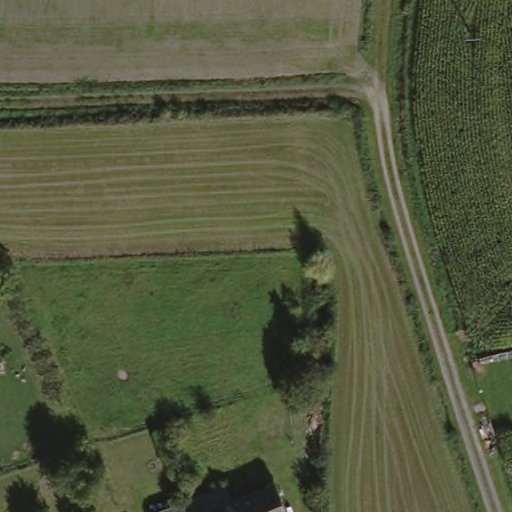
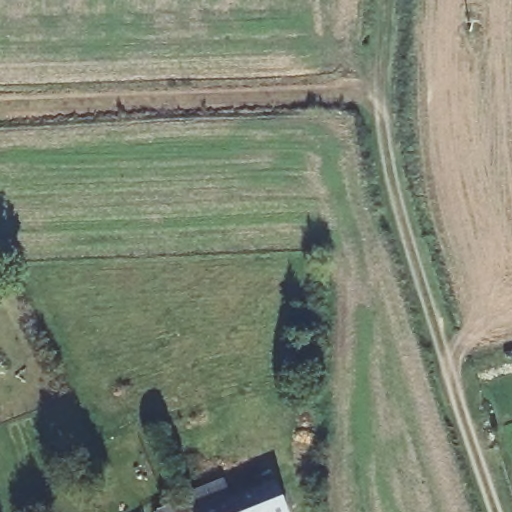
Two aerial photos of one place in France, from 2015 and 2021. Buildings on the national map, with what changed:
unchanged [(219,485),(226,502),(274,485),(286,512),(158,512),(157,510),(219,485)]

